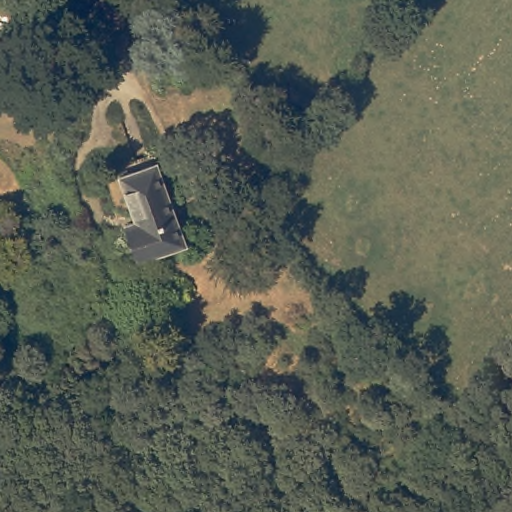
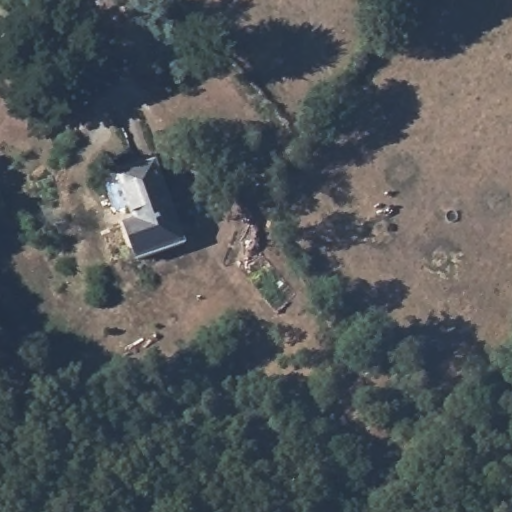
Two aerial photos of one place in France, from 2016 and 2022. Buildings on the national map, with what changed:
unchanged [(153,164),(187,240),(140,259),(127,227),(137,222),(119,178),(153,164)]

